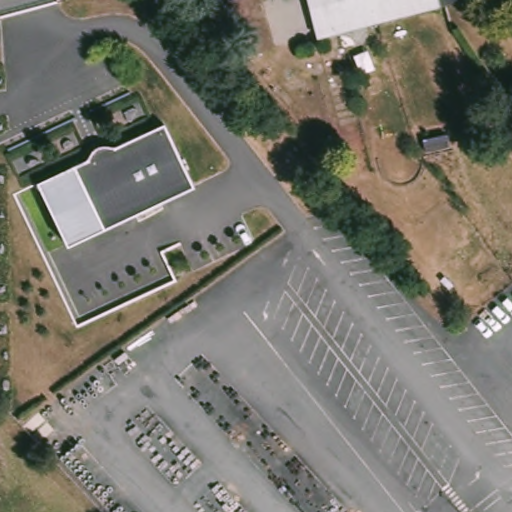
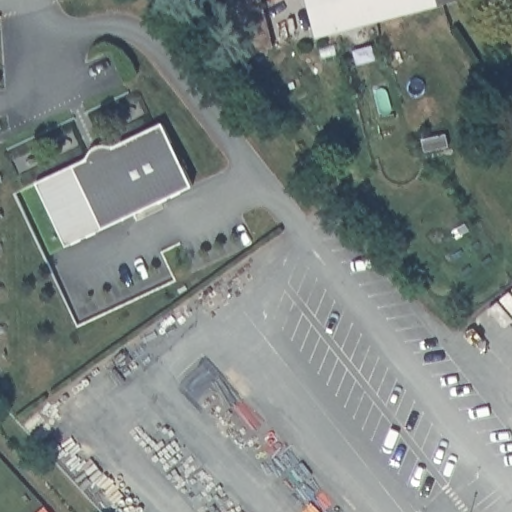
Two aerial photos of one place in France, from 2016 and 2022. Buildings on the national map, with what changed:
unchanged [(274,45),(244,54),(230,0),(264,0),(275,45),(274,45)]
unchanged [(340,29),(341,33),(319,39),(308,0),(449,0),(447,0),(340,29)]
unchanged [(165,120),(193,186),(100,227),(73,162),(165,120)]
unchanged [(37,181),(73,162),(100,227),(65,244),(37,181)]

